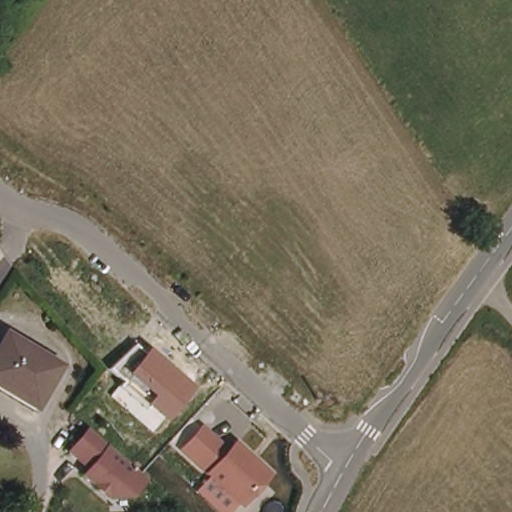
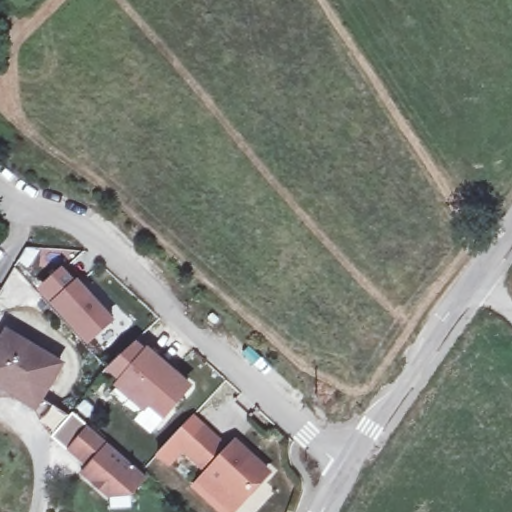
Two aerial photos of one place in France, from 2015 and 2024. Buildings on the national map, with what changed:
new [(35,290),(62,266),(75,280),(77,278),(115,319),(87,345),(35,290)]
unchanged [(59,363),(40,405),(0,387),(0,347),(5,336),(59,363)]
unchanged [(165,423),(160,418),(151,432),(110,396),(122,381),(107,369),(133,345),(142,354),(148,347),(193,387),(165,423)]
unchanged [(199,421),(224,443),(230,437),(272,471),(242,505),(177,445),(199,421)]
unchanged [(78,467),(85,460),(66,443),(85,423),(147,477),(130,496),(109,497),(78,467)]
unchanged [(196,493),(211,476),(242,505),(232,512),(218,512),(196,493)]

